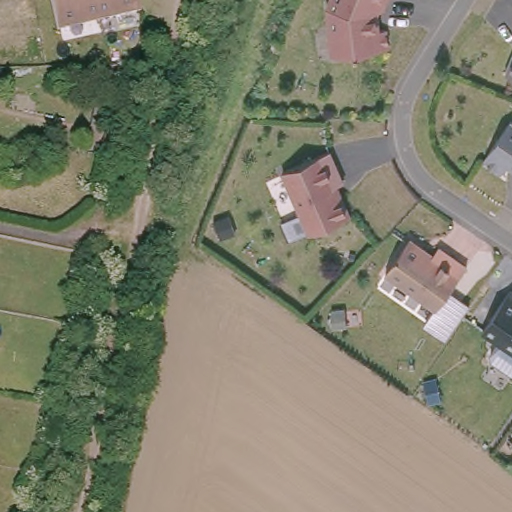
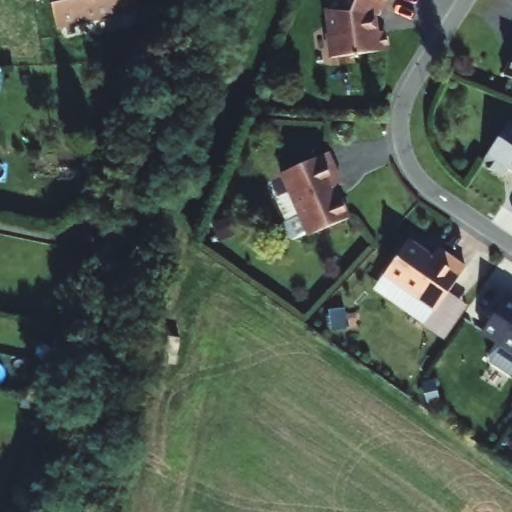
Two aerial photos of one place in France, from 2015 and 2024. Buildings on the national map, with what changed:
unchanged [(127,10),(100,16),(57,26),(50,0),(137,0),(139,8),(127,10)]
unchanged [(309,13),(314,0),(370,0),(367,8),(362,6),(355,21),(360,37),(366,35),(371,54),(343,61),(344,64),(341,65),(340,62),(317,68),(311,45),(312,44),(307,21),(309,13)]
unchanged [(501,76),(512,49),(512,81),(501,76)]
unchanged [(510,166),(502,176),(484,163),(512,123),(512,168),(510,166)]
unchanged [(331,162),(322,166),(327,175),(329,174),(340,195),(301,216),(270,155),(315,132),(331,162)]
unchanged [(432,253),(437,248),(463,267),(434,310),(382,275),(409,236),(432,253)]
unchanged [(512,294),(512,355),(482,333),(510,292),(512,294)]

